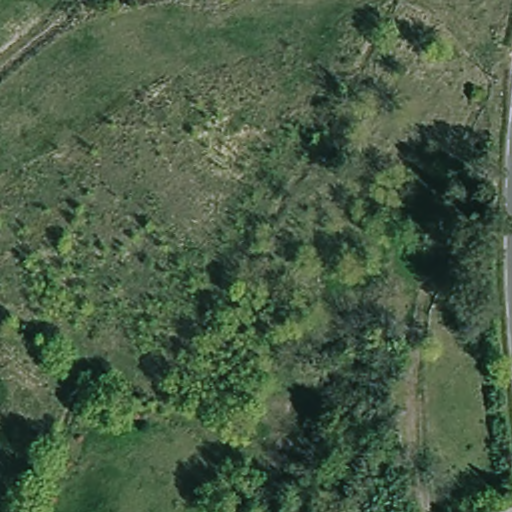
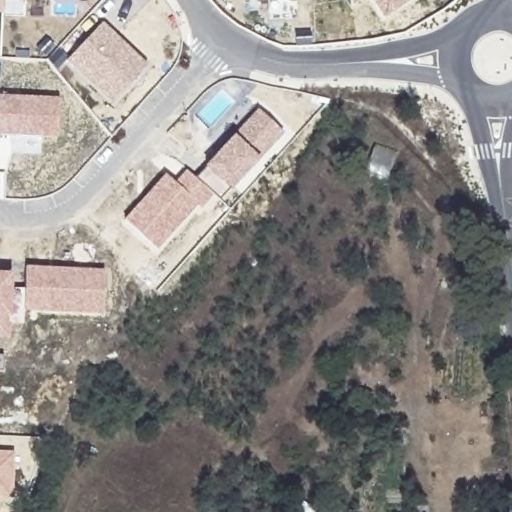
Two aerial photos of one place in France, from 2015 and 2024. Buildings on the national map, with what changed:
new [(246,0),(297,0),(246,1),(246,0)]
new [(350,0),(358,0),(353,4),(350,0)]
new [(371,0),(412,0),(385,20),(371,0)]
new [(103,22),(149,65),(113,103),(67,61),(103,22)]
new [(60,98),(58,137),(0,135),(0,96),(60,98)]
new [(175,183),(186,170),(196,178),(205,167),(234,135),(258,109),(284,132),(259,159),(230,190),(229,190),(220,199),(214,194),(202,208),(197,205),(158,250),(125,220),(166,174),(175,183)]
new [(0,338),(0,273),(13,274),(12,290),(14,291),(15,288),(24,290),(25,267),(105,270),(103,316),(24,311),(24,324),(10,324),(11,339),(0,338)]
new [(5,355),(3,371),(0,370),(0,355),(5,355)]
new [(15,452),(13,499),(0,498),(0,451),(15,452)]

